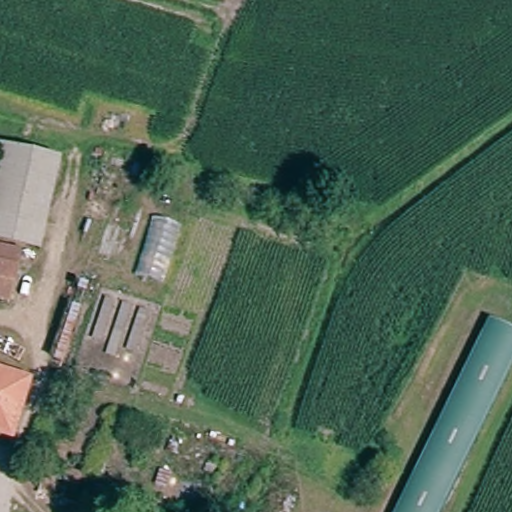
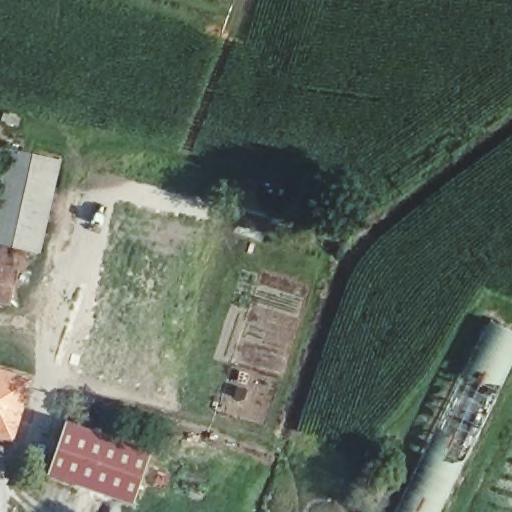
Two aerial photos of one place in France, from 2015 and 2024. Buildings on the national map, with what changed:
unchanged [(64,160),(44,251),(0,241),(0,145),(64,160)]
unchanged [(23,256),(11,310),(0,307),(0,250),(23,256)]
unchanged [(493,317),(512,324),(512,374),(448,512),(397,512),(493,317)]
unchanged [(30,386),(12,441),(0,437),(0,377),(30,386)]
new [(65,417),(107,431),(152,443),(132,505),(44,474),(65,417)]

